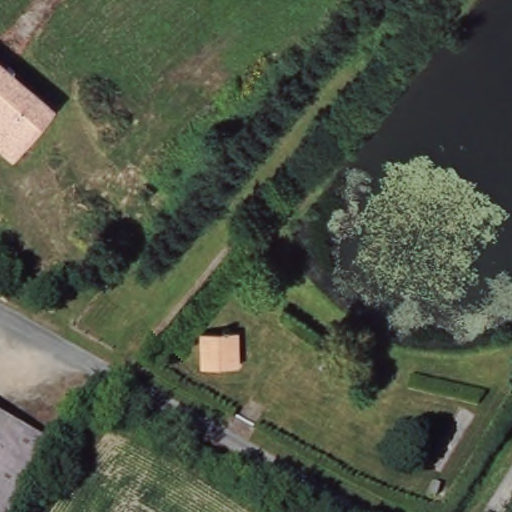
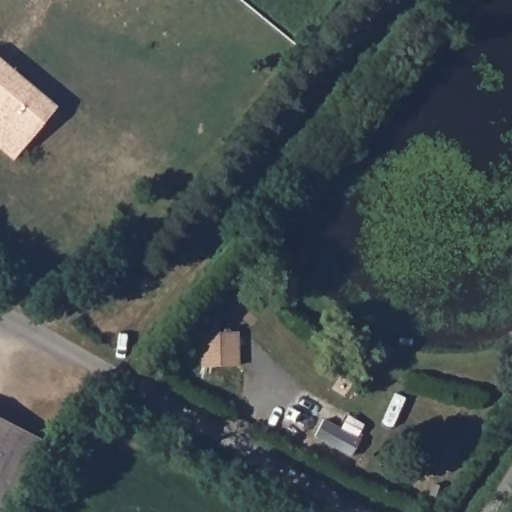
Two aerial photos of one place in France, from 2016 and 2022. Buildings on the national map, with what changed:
unchanged [(13,68),(9,77),(55,101),(25,152),(0,137),(0,58),(13,68)]
unchanged [(201,331),(245,329),(247,364),(203,366),(201,331)]
unchanged [(12,512),(0,512),(0,424),(45,449),(12,512)]

